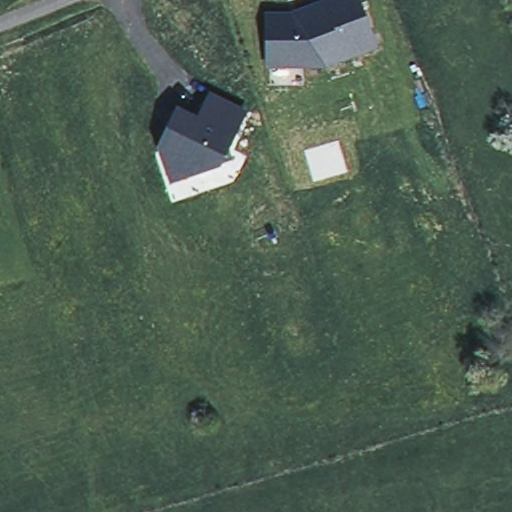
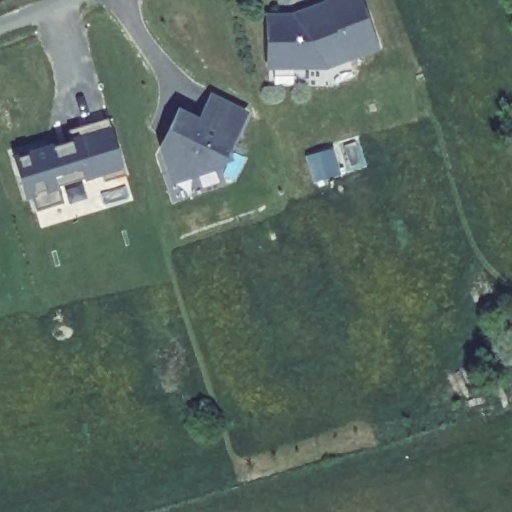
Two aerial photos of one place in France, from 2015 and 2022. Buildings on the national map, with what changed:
unchanged [(327,71),(292,71),(292,65),(268,65),(267,21),(292,21),(327,7),(325,3),(334,0),(359,0),(378,50),(327,71)]
unchanged [(168,173),(170,172),(162,156),(175,132),(170,130),(179,111),(199,120),(212,96),(245,113),(220,165),(197,173),(172,181),(168,173)]
new [(125,175),(104,182),(102,173),(90,176),(58,185),(63,203),(37,211),(32,193),(25,195),(15,158),(12,153),(45,142),(47,148),(71,141),(67,130),(107,117),(125,175)]

